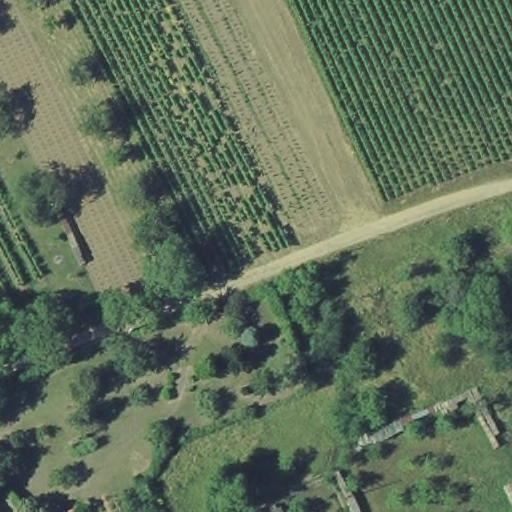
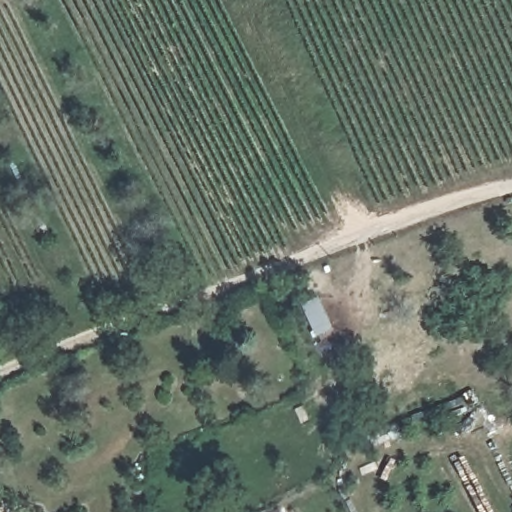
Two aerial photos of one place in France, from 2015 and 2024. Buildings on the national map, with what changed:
unchanged [(1,512),(0,512),(0,509),(1,512)]

